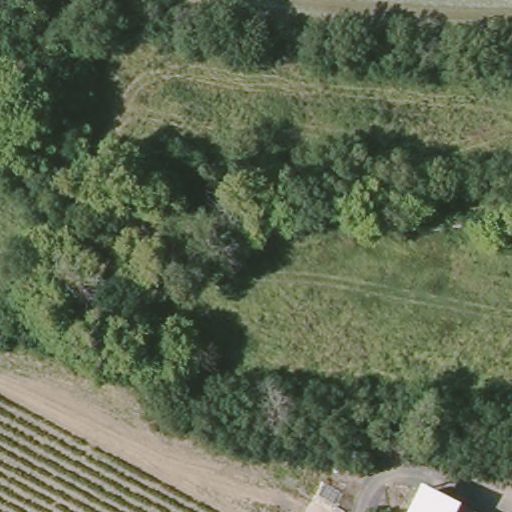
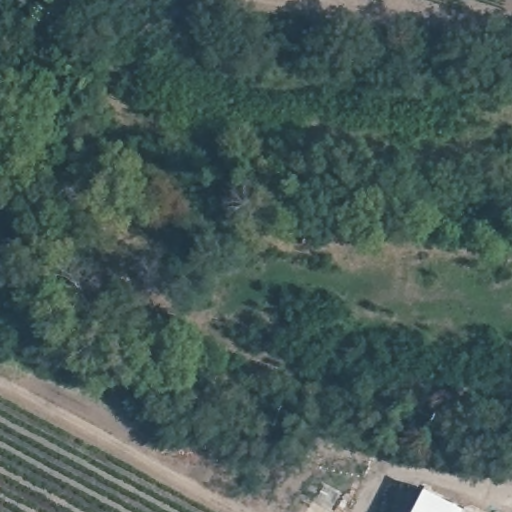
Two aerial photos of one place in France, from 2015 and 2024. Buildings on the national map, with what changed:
unchanged [(410,512),(424,485),(464,505),(460,512),(410,512)]
unchanged [(474,512),(466,512),(468,509),(474,512)]

